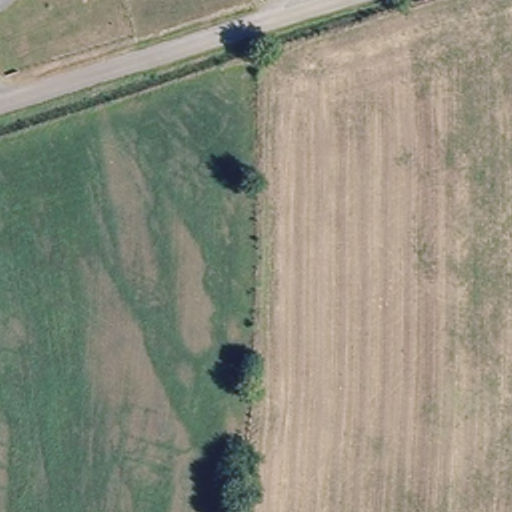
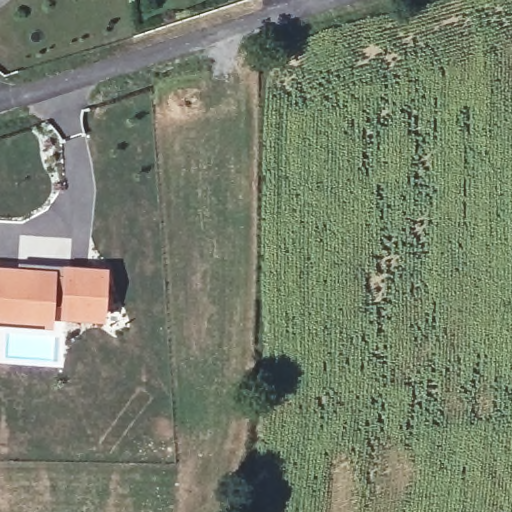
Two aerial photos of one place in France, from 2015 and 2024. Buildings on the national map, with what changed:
new [(60,303),(55,303),(53,328),(0,325),(0,266),(55,270),(55,274),(61,274),(62,265),(108,268),(105,321),(60,318),(60,303)]

